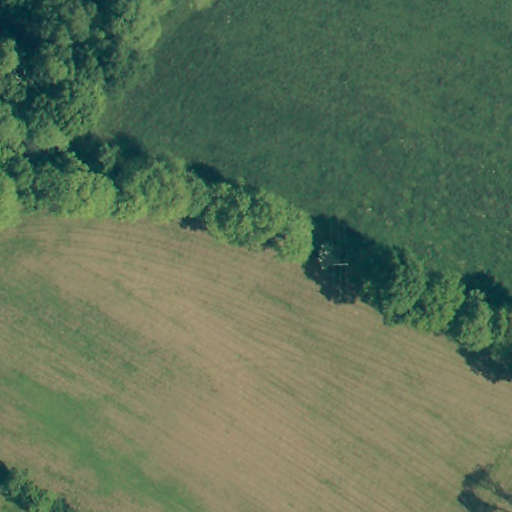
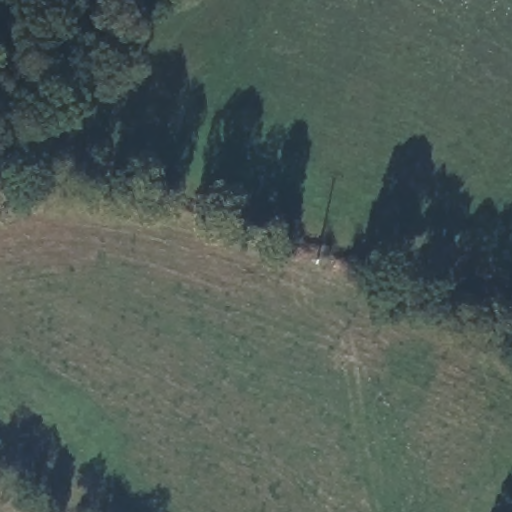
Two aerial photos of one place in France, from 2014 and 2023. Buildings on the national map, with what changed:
[]

